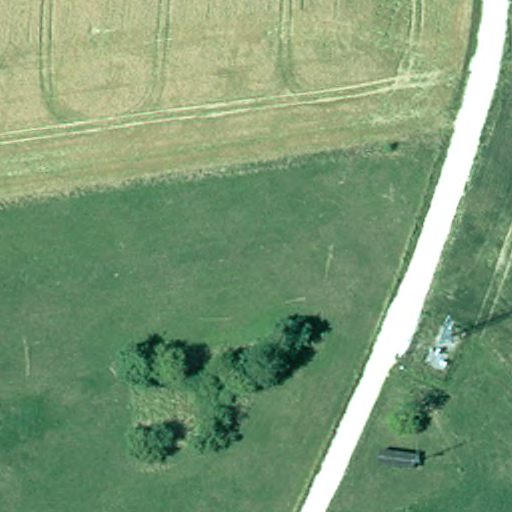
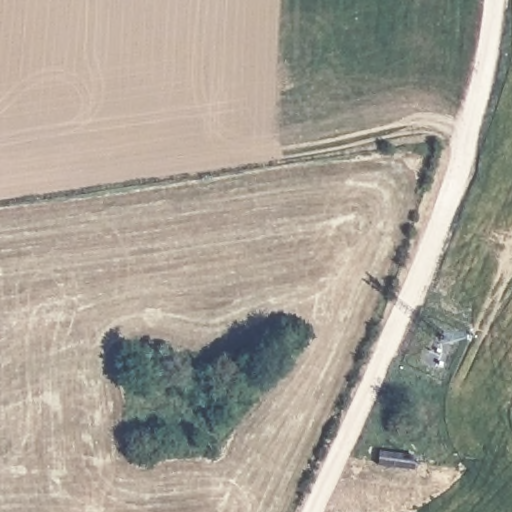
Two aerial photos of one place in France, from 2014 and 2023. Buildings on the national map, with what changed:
unchanged [(415,457),(413,474),(377,470),(380,451),(415,457)]

